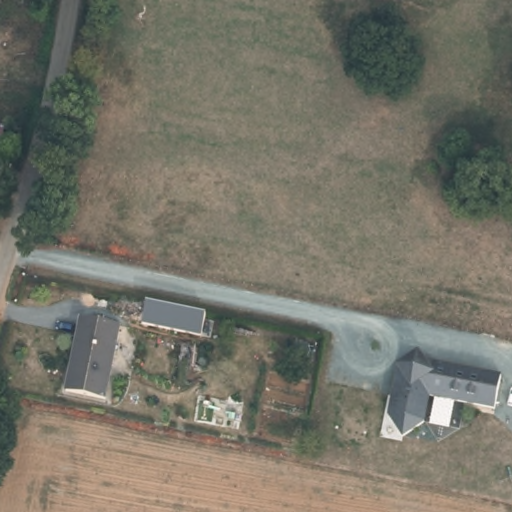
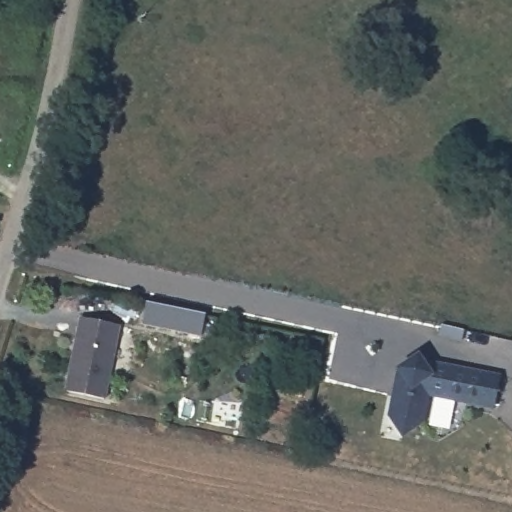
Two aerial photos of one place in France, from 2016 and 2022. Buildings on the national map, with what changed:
unchanged [(200,337),(145,324),(148,302),(205,315),(200,337)]
unchanged [(65,389),(71,360),(74,348),(80,316),(120,324),(104,397),(65,389)]
unchanged [(501,375),(494,407),(428,394),(423,420),(402,433),(389,414),(398,367),(418,353),(422,359),(501,375)]

